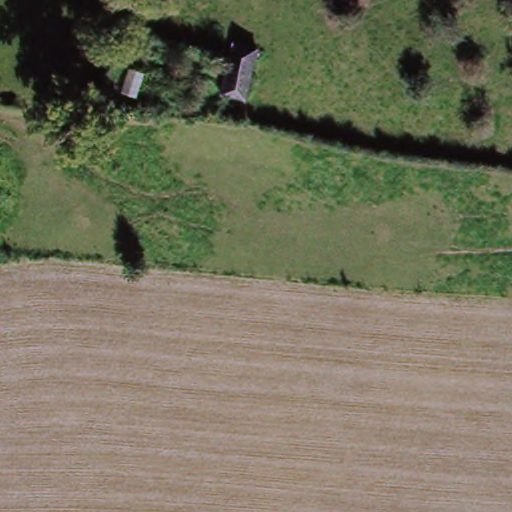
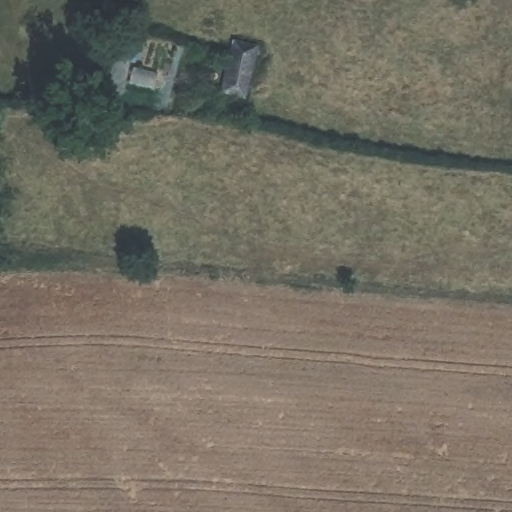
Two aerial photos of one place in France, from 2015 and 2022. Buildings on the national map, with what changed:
unchanged [(234,41),(261,49),(249,92),(223,84),(234,41)]

